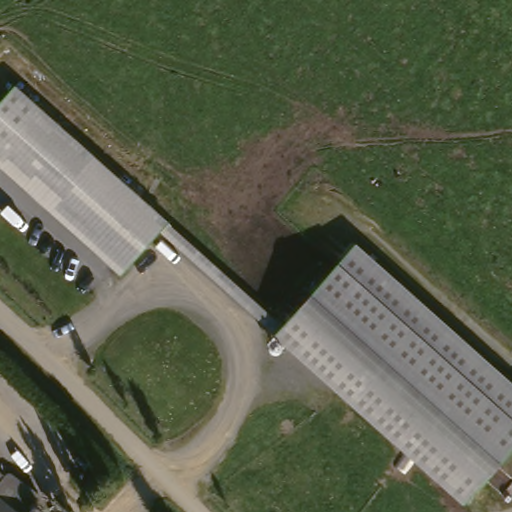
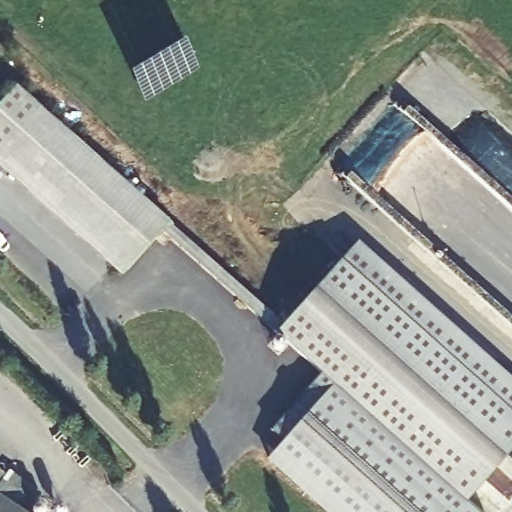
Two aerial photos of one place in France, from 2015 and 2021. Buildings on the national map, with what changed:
unchanged [(16,86),(169,222),(120,275),(0,166),(0,103),(16,86)]
new [(287,324),(277,335),(160,232),(169,222),(287,324)]
unchanged [(512,381),(512,448),(462,503),(277,335),(356,244),(512,381)]
new [(465,500),(476,512),(323,512),(266,461),(283,443),(271,432),(320,374),(462,503),(465,500)]
unchanged [(36,512),(0,512),(0,505),(7,495),(18,503),(36,483),(50,494),(36,512)]

